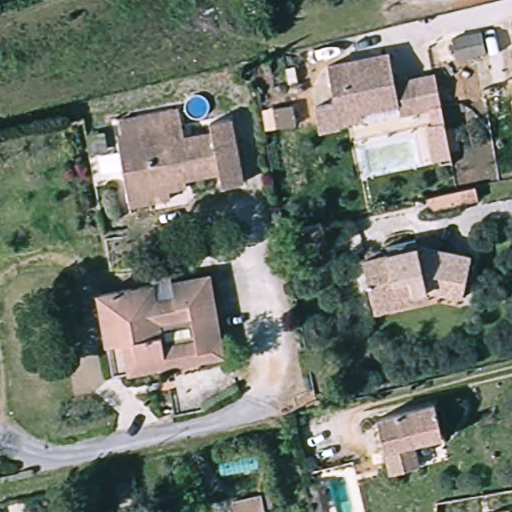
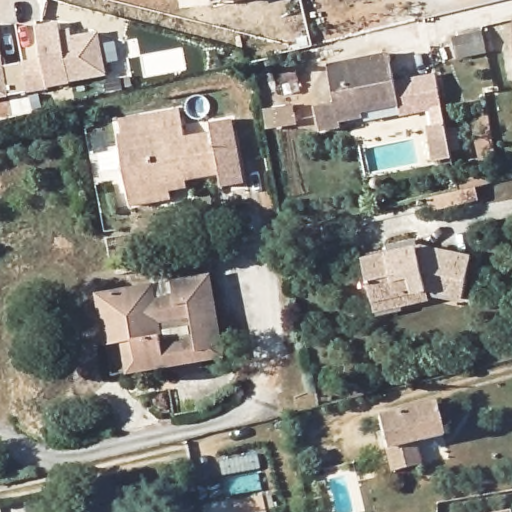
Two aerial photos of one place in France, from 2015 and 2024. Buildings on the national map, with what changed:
new [(223,2),(223,1),(213,3),(213,0),(234,0),(223,2)]
new [(38,30),(62,25),(63,35),(73,32),(74,40),(100,35),(107,77),(72,83),(72,85),(50,89),(50,90),(30,95),(25,66),(45,62),(38,30)]
unchanged [(512,38),(512,51),(509,39),(512,38)]
new [(5,69),(25,65),(25,66),(30,95),(0,100),(0,44),(5,69)]
unchanged [(399,82),(420,79),(425,116),(324,135),(318,110),(338,104),(331,66),(393,54),(399,82)]
new [(427,126),(434,125),(430,109),(425,111),(420,79),(436,76),(452,159),(433,162),(427,126)]
unchanged [(183,140),(210,135),(208,124),(228,121),(241,185),(221,188),(218,174),(184,180),(186,187),(168,191),(170,200),(129,207),(115,138),(119,137),(117,122),(177,111),(183,140)]
unchanged [(377,310),(373,298),(366,261),(429,247),(470,256),(459,295),(429,289),(430,300),(377,310)]
unchanged [(169,371),(118,385),(111,355),(104,327),(98,297),(155,284),(160,302),(178,297),(174,280),(208,272),(226,342),(230,358),(169,371)]
unchanged [(376,413),(433,398),(441,431),(411,437),(417,462),(388,468),(376,413)]
unchanged [(270,468),(230,478),(226,459),(265,452),(270,468)]
unchanged [(260,495),(264,512),(234,512),(231,502),(260,495)]

